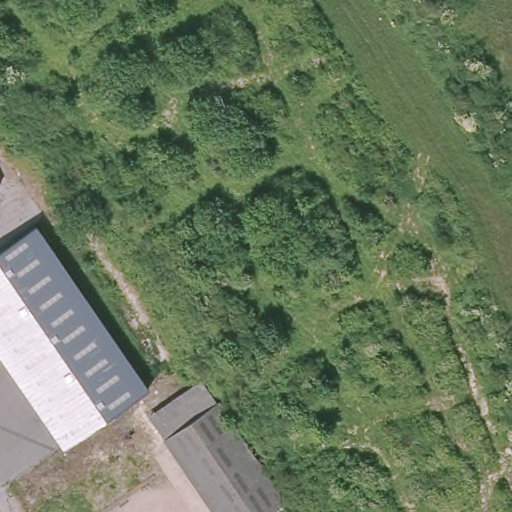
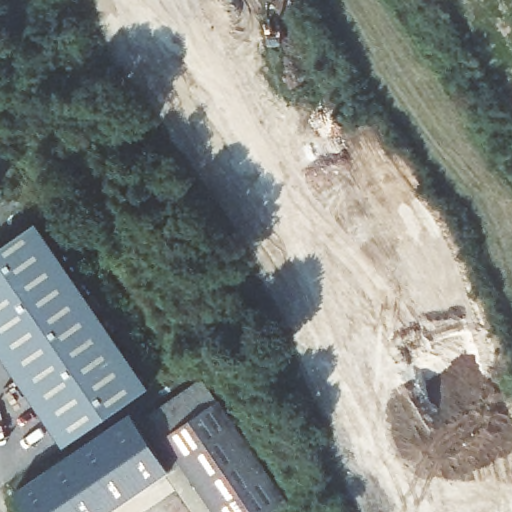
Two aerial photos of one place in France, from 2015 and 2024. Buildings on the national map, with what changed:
unchanged [(5,187),(0,190),(0,181),(5,187)]
unchanged [(36,223),(149,387),(63,445),(0,353),(0,248),(36,223)]
unchanged [(201,381),(285,500),(268,512),(214,512),(146,410),(201,381)]
new [(170,468),(106,512),(31,512),(16,491),(132,412),(170,468)]

